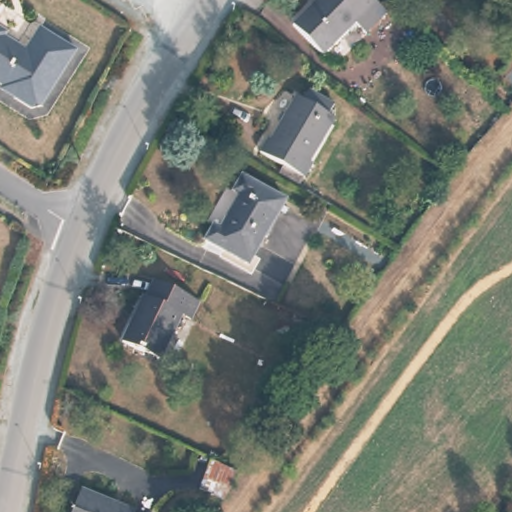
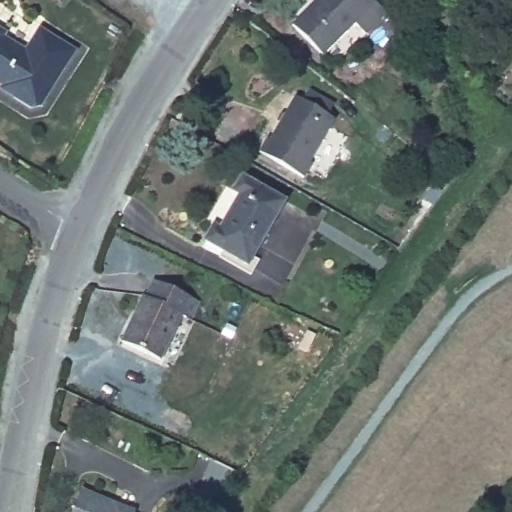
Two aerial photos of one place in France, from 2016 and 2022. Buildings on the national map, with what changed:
unchanged [(385,16),(365,37),(353,26),(321,56),(292,26),(320,0),(371,0),(385,16)]
unchanged [(7,33),(9,38),(6,42),(27,56),(44,30),(80,53),(66,73),(45,107),(35,110),(17,99),(19,96),(0,83),(0,28),(7,33)]
unchanged [(281,175),(285,169),(260,154),(268,140),(271,141),(297,99),(304,103),(310,93),(322,101),(333,109),(328,117),(335,122),(310,163),(312,165),(302,180),(299,186),(281,175)]
unchanged [(286,204),(246,271),(203,247),(214,230),(220,233),(240,199),(234,195),(244,179),(286,204)]
unchanged [(143,299),(145,300),(153,281),(197,299),(190,318),(180,315),(163,361),(125,347),(143,299)]
unchanged [(199,491),(211,467),(231,476),(220,502),(199,491)]
unchanged [(140,512),(75,512),(85,488),(140,512)]

